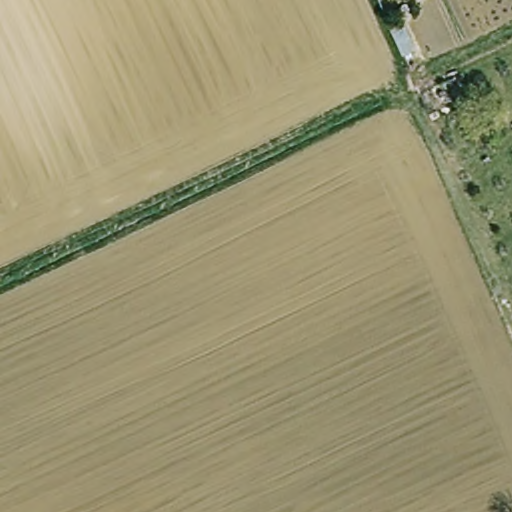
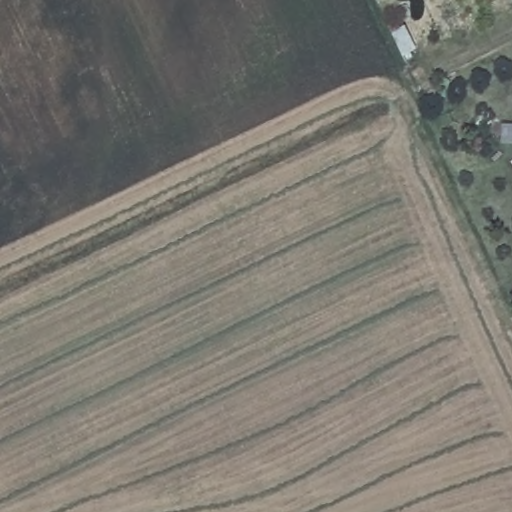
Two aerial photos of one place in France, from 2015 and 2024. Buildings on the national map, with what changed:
unchanged [(417,50),(402,59),(383,18),(400,9),(417,50)]

